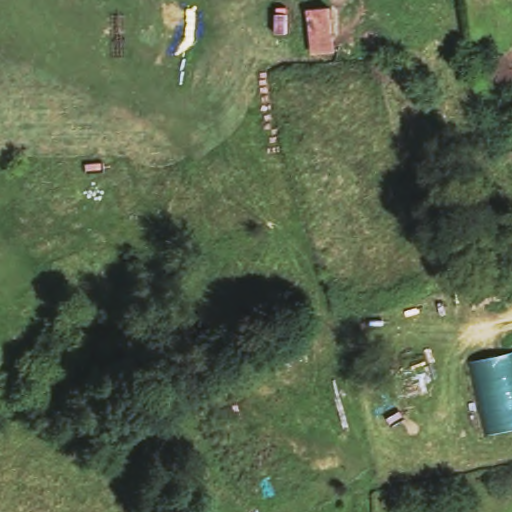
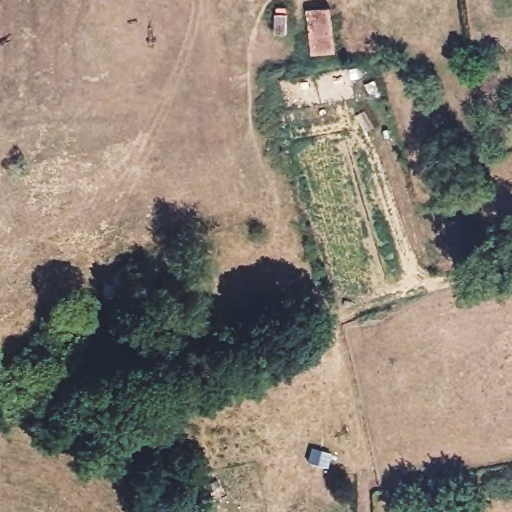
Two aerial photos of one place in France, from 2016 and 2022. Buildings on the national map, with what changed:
unchanged [(337,52),(310,52),(308,32),(307,10),(333,6),(337,52)]
demolished [(512,353),(512,429),(485,435),(471,360),(512,353)]

